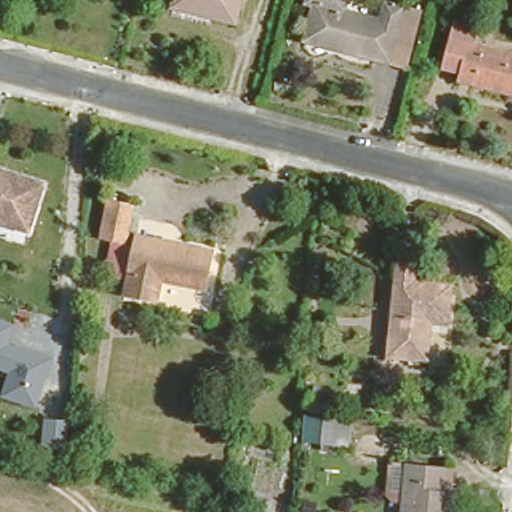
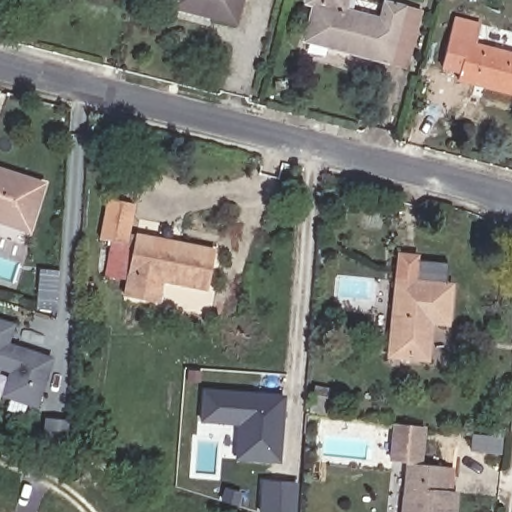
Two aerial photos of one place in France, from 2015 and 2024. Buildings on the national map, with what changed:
unchanged [(172,1),(172,0),(238,0),(233,18),(172,1)]
unchanged [(303,37),(313,0),(347,0),(344,8),(380,18),(384,1),(400,5),(386,59),(303,37)]
unchanged [(419,10),(406,64),(386,59),(400,5),(419,10)]
unchanged [(459,70),(438,65),(446,35),(451,15),(470,20),(465,40),(512,52),(512,94),(457,79),(459,70)]
unchanged [(0,215),(0,165),(43,177),(29,223),(0,215)]
unchanged [(123,235),(99,230),(109,193),(134,199),(125,236),(123,235)]
unchanged [(160,278),(155,299),(119,290),(136,228),(211,246),(201,288),(160,278)]
unchanged [(426,317),(421,354),(385,349),(403,229),(422,232),(415,277),(448,281),(443,319),(426,317)]
unchanged [(12,345),(52,358),(36,409),(0,397),(0,390),(6,373),(0,371),(0,320),(19,326),(12,345)]
new [(237,426),(201,424),(202,388),(285,395),(280,464),(234,460),(237,426)]
unchanged [(314,435),(317,406),(345,409),(343,437),(314,435)]
new [(47,417),(70,419),(67,450),(45,442),(47,417)]
unchanged [(444,461),(442,484),(453,486),(451,512),(401,512),(407,456),(444,461)]
new [(297,483),(295,512),(259,512),(260,480),(297,483)]

